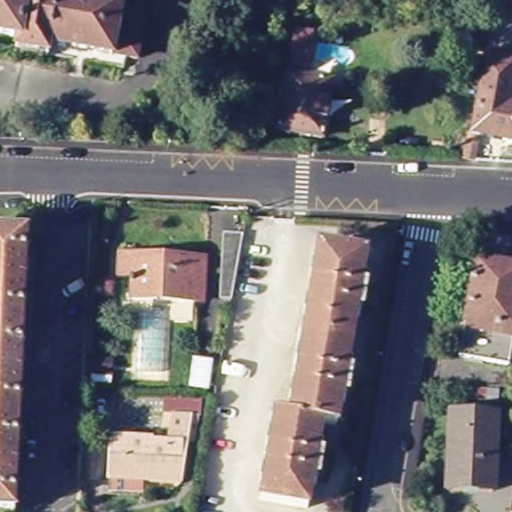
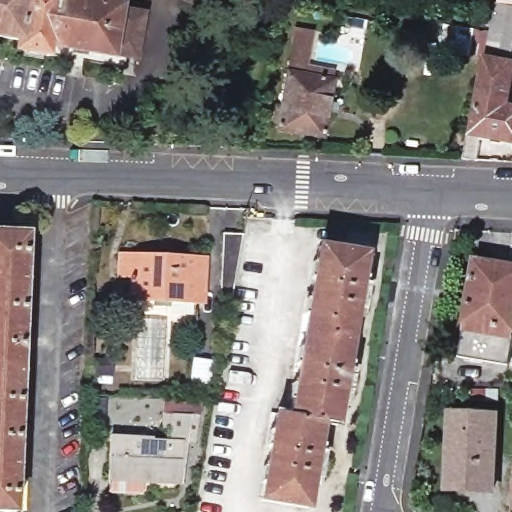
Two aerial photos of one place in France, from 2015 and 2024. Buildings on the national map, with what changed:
unchanged [(123,4),(122,7),(135,9),(128,52),(116,50),(116,52),(56,43),(55,55),(22,50),(23,39),(0,35),(0,0),(95,0),(123,4)]
unchanged [(503,108),(512,110),(512,144),(480,139),(475,161),(462,161),(467,135),(473,136),(492,36),(497,6),(498,0),(512,0),(512,58),(503,108)]
unchanged [(293,74),(337,81),(327,138),(283,130),(293,74)]
unchanged [(214,296),(226,231),(245,235),(234,300),(214,296)]
unchanged [(17,512),(0,512),(0,234),(26,235),(17,512)]
unchanged [(270,458),(277,420),(292,422),(301,375),(297,375),(311,295),(315,296),(322,250),(371,260),(364,298),(369,298),(367,310),(362,309),(350,381),(355,382),(353,395),(347,392),(341,431),(327,428),(321,465),(326,465),(324,476),(319,476),(313,512),(307,512),(266,504),(273,459),(270,458)]
unchanged [(197,258),(197,268),(209,269),(207,303),(140,300),(142,271),(129,270),(129,255),(197,258)]
unchanged [(478,258),(512,265),(512,365),(461,355),(478,258)]
unchanged [(501,415),(497,494),(443,492),(447,412),(501,415)]
unchanged [(178,430),(180,418),(199,421),(196,442),(183,440),(184,431),(178,430)]
unchanged [(183,440),(182,485),(109,481),(112,436),(183,440)]

